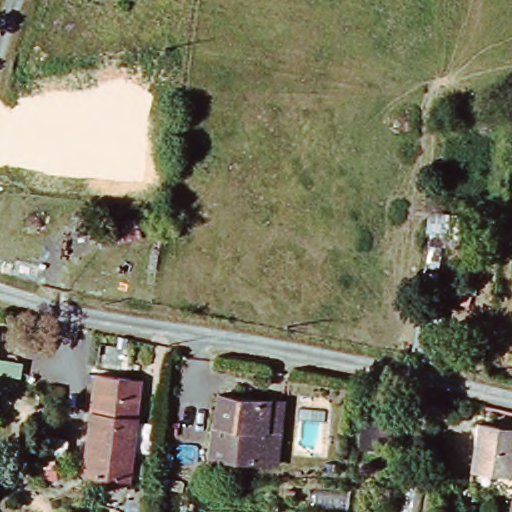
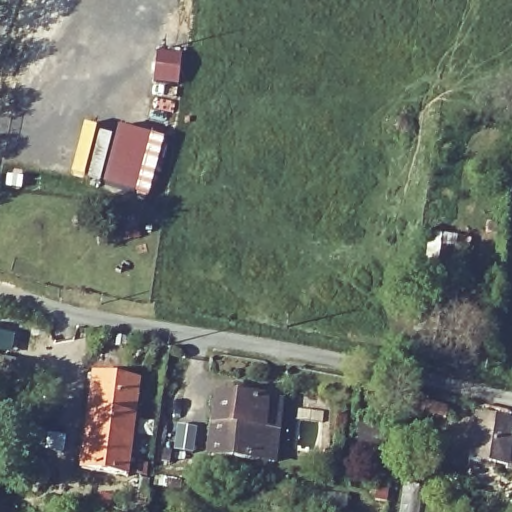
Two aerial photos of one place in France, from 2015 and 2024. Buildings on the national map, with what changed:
new [(120,127),(164,138),(148,196),(105,183),(120,127)]
unchanged [(81,466),(99,371),(138,378),(121,474),(81,466)]
unchanged [(207,452),(216,392),(266,398),(279,400),(275,428),(270,462),(207,452)]
unchanged [(418,410),(403,407),(405,396),(420,398),(418,410)]
unchanged [(424,402),(449,407),(447,418),(423,413),(424,402)]
unchanged [(477,421),(501,425),(502,419),(512,421),(512,468),(471,461),(477,421)]

